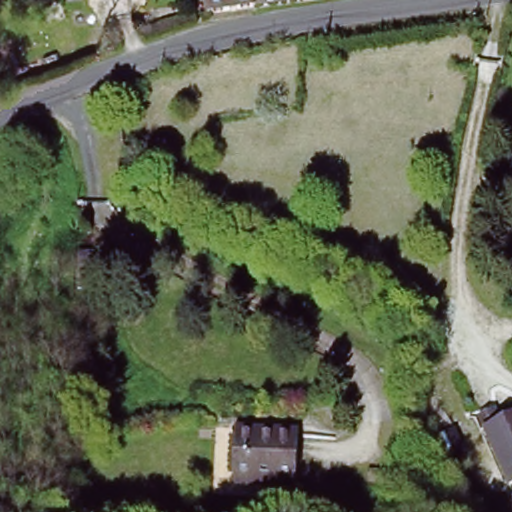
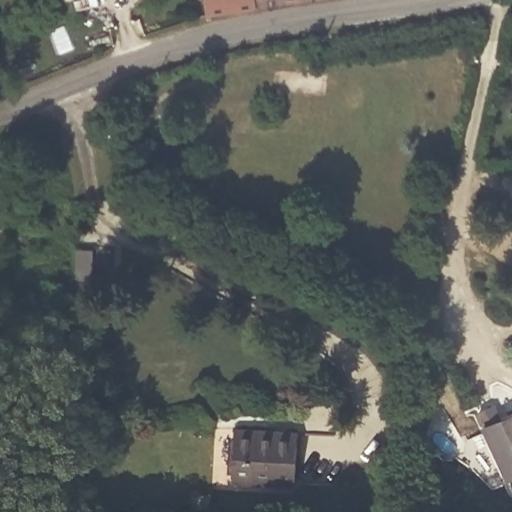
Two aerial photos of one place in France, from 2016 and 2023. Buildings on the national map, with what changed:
unchanged [(257,7),(206,14),(204,0),(256,0),(257,7)]
unchanged [(257,7),(256,0),(310,0),(257,7)]
unchanged [(2,158),(0,158),(0,137),(2,158)]
unchanged [(106,244),(108,262),(110,278),(92,280),(90,257),(90,245),(106,244)]
unchanged [(512,414),(512,479),(510,480),(483,425),(512,414)]
unchanged [(297,433),(293,486),(231,481),(236,427),(297,433)]

